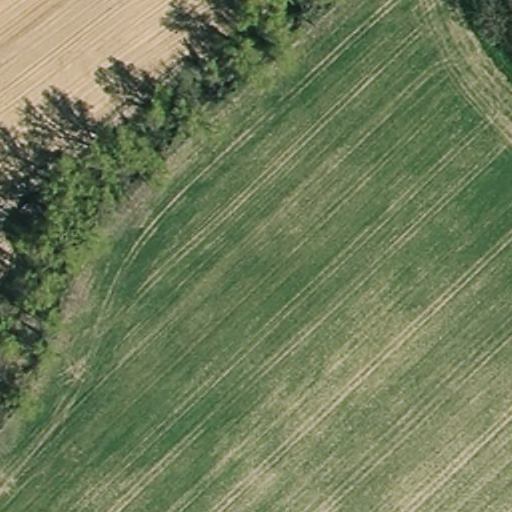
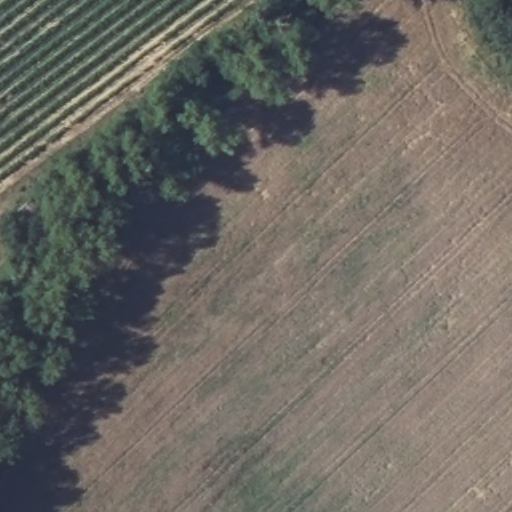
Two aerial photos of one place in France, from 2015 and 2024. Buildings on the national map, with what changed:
unchanged [(39,187),(53,202),(33,222),(18,207),(39,187)]

